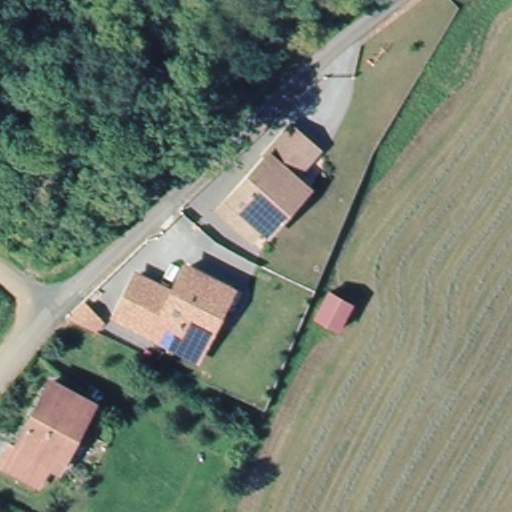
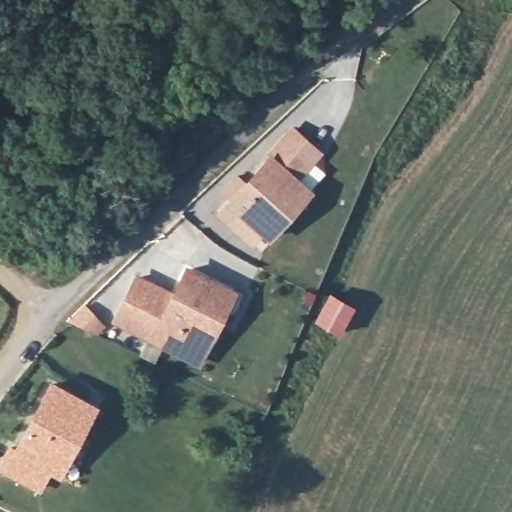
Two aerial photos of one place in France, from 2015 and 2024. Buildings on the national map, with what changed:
unchanged [(229,200),(268,155),(265,153),(289,125),(315,147),(293,175),(307,186),(292,204),(288,201),(279,212),(283,215),(268,233),(260,226),(250,238),(219,212),(229,200)]
unchanged [(154,344),(116,326),(137,282),(174,300),(187,273),(233,295),(205,351),(199,365),(154,344)]
unchanged [(340,340),(316,328),(330,297),(356,310),(340,340)]
unchanged [(0,474),(0,453),(1,450),(8,454),(44,388),(84,410),(52,475),(40,468),(29,490),(0,474)]

